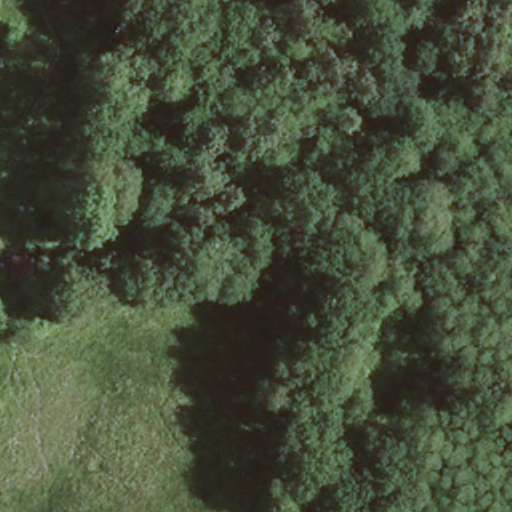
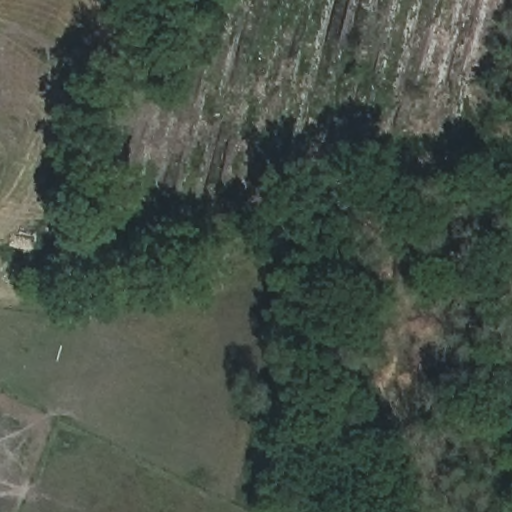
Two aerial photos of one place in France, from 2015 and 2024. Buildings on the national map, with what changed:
unchanged [(3,282),(7,262),(27,262),(22,280),(3,282)]

